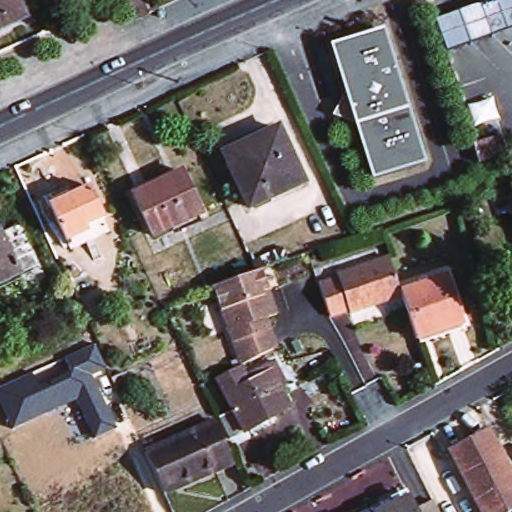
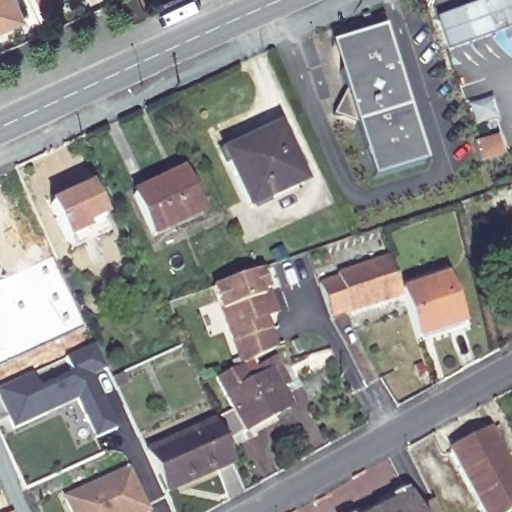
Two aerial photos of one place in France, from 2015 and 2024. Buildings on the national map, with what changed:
unchanged [(0,30),(0,0),(22,0),(29,18),(0,30)]
unchanged [(134,13),(129,0),(149,0),(151,6),(134,13)]
unchanged [(447,16),(499,0),(512,0),(512,28),(456,44),(447,16)]
unchanged [(345,96),(338,71),(331,48),(340,45),(382,31),(424,165),(372,181),(356,129),(333,116),(345,96)]
unchanged [(304,184),(247,209),(220,153),(277,128),(304,184)]
unchanged [(471,144),(494,137),(501,156),(477,164),(471,144)]
unchanged [(201,214),(153,236),(132,193),(181,172),(201,214)]
unchanged [(89,188),(86,189),(101,219),(82,228),(84,233),(66,240),(50,206),(64,199),(62,194),(86,183),(89,188)]
unchanged [(512,189),(512,192),(511,189),(512,189)]
demolished [(42,280),(24,289),(18,276),(0,284),(0,231),(3,236),(18,230),(42,280)]
unchanged [(280,248),(283,257),(271,261),(268,253),(280,248)]
new [(52,254),(85,324),(0,363),(0,277),(52,254)]
unchanged [(402,296),(349,314),(348,311),(330,317),(318,284),(337,278),(337,276),(389,259),(401,292),(402,296)]
unchanged [(271,296),(280,320),(273,322),(269,324),(281,355),(270,360),(258,365),(256,365),(255,367),(244,372),(216,292),(258,277),(264,275),(271,296)]
unchanged [(402,296),(401,292),(447,277),(463,324),(417,340),(411,321),(402,296)]
unchanged [(105,369),(94,374),(116,428),(92,439),(76,401),(11,430),(0,403),(0,388),(31,373),(37,386),(72,370),(67,358),(95,345),(105,369)]
unchanged [(290,391),(284,393),(295,413),(234,444),(223,423),(236,417),(221,386),(245,375),(249,382),(278,368),(290,391)]
unchanged [(237,470),(168,500),(149,457),(217,426),(237,470)]
unchanged [(487,433),(512,481),(512,511),(510,512),(480,512),(450,451),(487,433)]
new [(62,498),(129,467),(148,512),(69,512),(62,498)]
unchanged [(408,504),(412,512),(392,512),(408,504)]
unchanged [(432,507),(435,512),(423,512),(432,507)]

